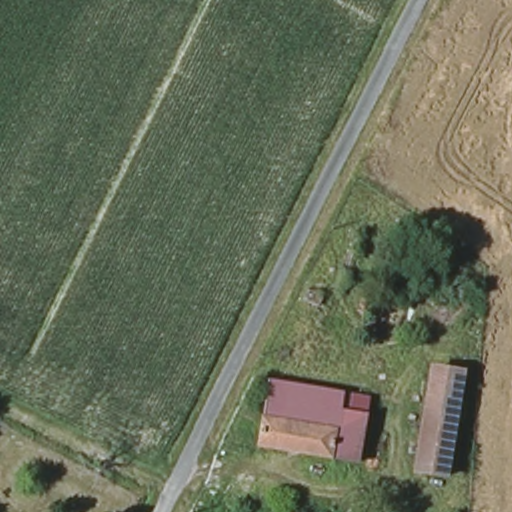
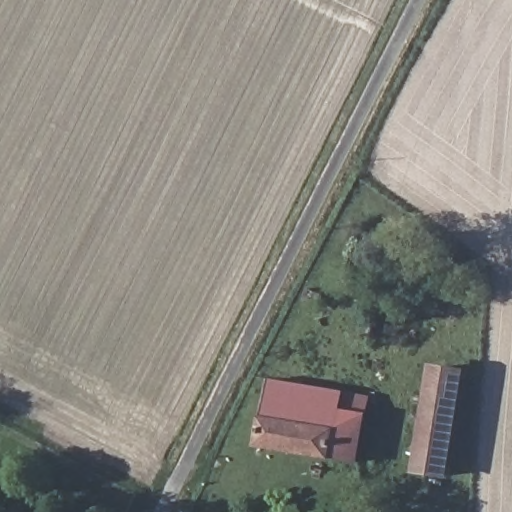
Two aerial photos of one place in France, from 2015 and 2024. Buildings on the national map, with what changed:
unchanged [(328,294),(321,313),(303,304),(312,286),(328,294)]
unchanged [(466,377),(449,478),(422,474),(435,372),(466,377)]
unchanged [(345,417),(367,420),(360,467),(265,448),(274,384),(347,396),(345,417)]

